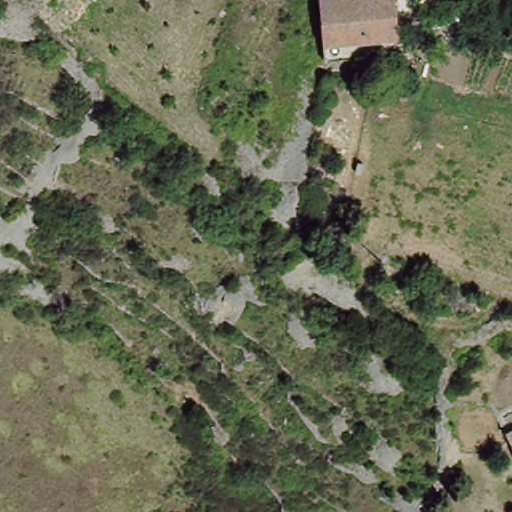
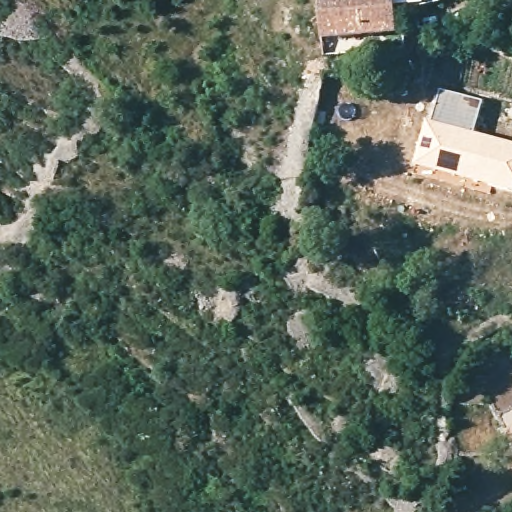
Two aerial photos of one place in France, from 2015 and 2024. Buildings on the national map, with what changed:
unchanged [(348,64),(322,66),(316,0),(400,0),(392,1),(394,40),(345,44),(348,64)]
new [(430,121),(440,89),(484,100),(476,132),(512,142),(512,194),(414,166),(427,120),(430,121)]
unchanged [(512,436),(512,450),(506,440),(512,436)]

